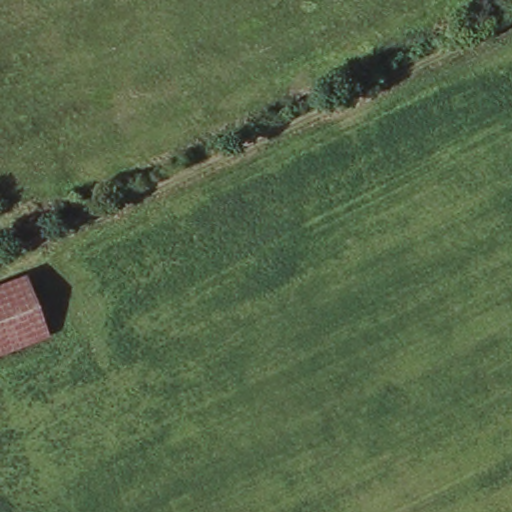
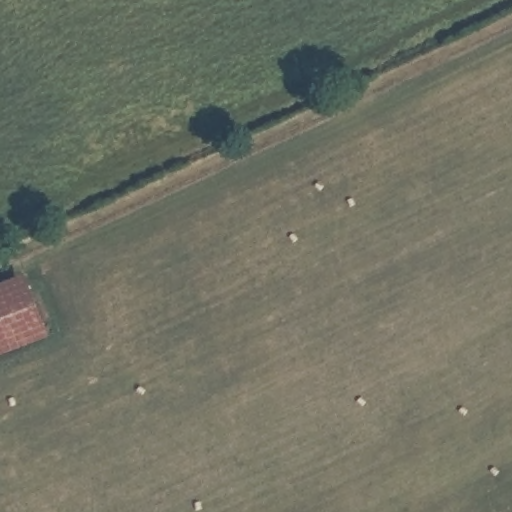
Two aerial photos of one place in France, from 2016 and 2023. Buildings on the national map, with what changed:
unchanged [(52,338),(0,358),(0,288),(26,279),(52,338)]

